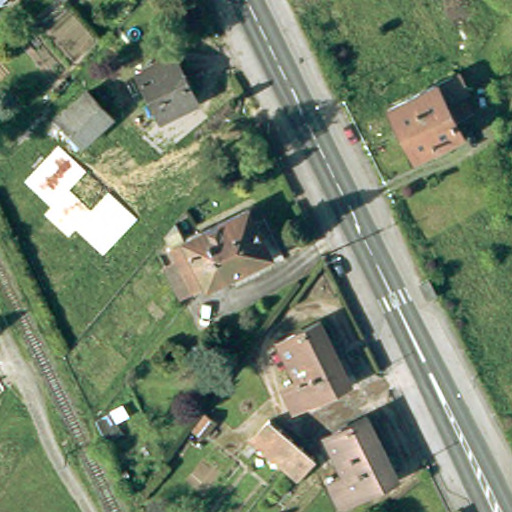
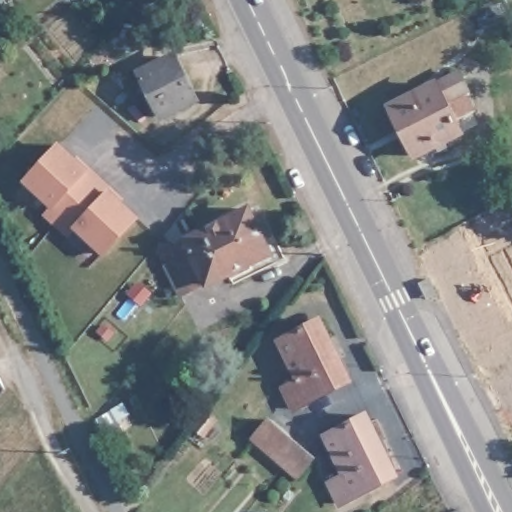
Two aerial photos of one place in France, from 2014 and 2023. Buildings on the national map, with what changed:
unchanged [(7,0),(9,0),(8,1),(7,0)]
unchanged [(180,60),(200,101),(170,117),(148,75),(180,60)]
unchanged [(435,153),(430,146),(410,155),(400,134),(387,107),(431,87),(453,76),(463,93),(441,105),(446,112),(456,133),(440,142),(445,149),(435,153)]
new [(125,196),(122,198),(140,217),(104,256),(76,228),(67,237),(43,214),(52,207),(22,180),(59,141),(76,157),(81,155),(125,196)]
unchanged [(240,280),(237,274),(193,296),(178,266),(187,261),(183,251),(197,245),(194,240),(255,210),(277,255),(259,263),(262,268),(240,280)]
unchanged [(326,328),(355,387),(300,413),(289,392),(303,385),(285,348),(326,328)]
unchanged [(208,419),(230,435),(221,446),(200,430),(208,419)]
unchanged [(292,477),(270,459),(248,440),(265,421),(286,440),(308,458),(292,477)]
unchanged [(367,427),(395,485),(340,512),(330,492),(346,484),(327,447),(367,427)]

